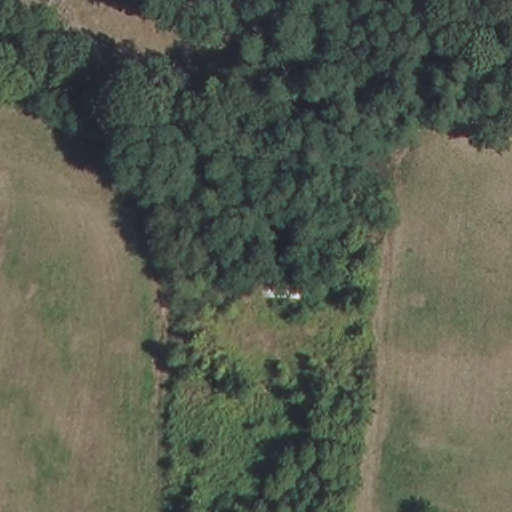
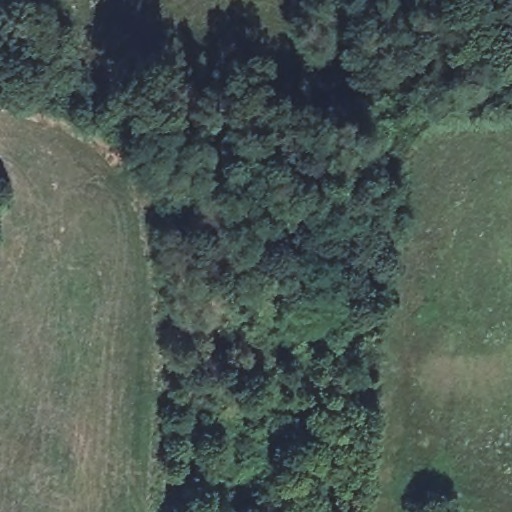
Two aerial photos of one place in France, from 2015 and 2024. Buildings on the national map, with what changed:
[]

